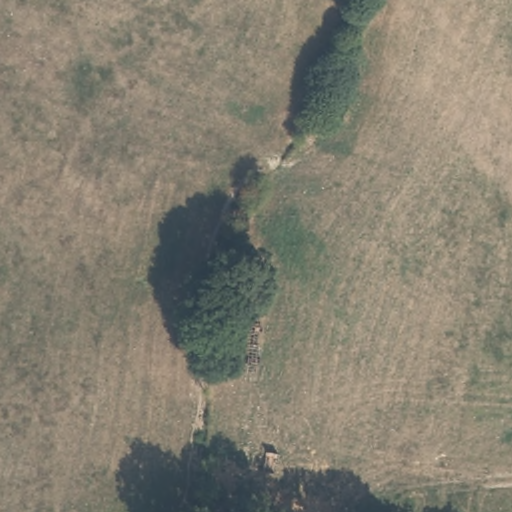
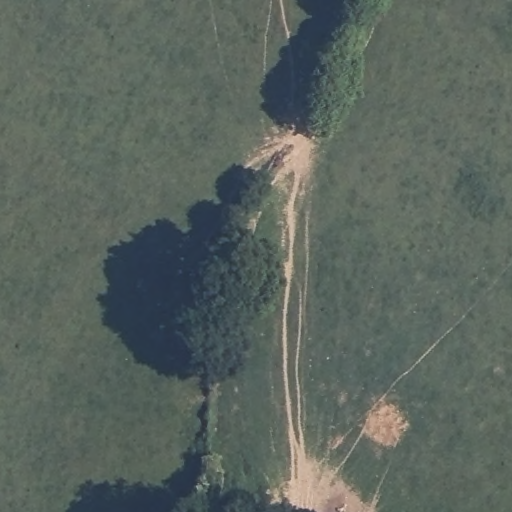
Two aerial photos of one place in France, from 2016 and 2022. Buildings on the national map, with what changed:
[]

